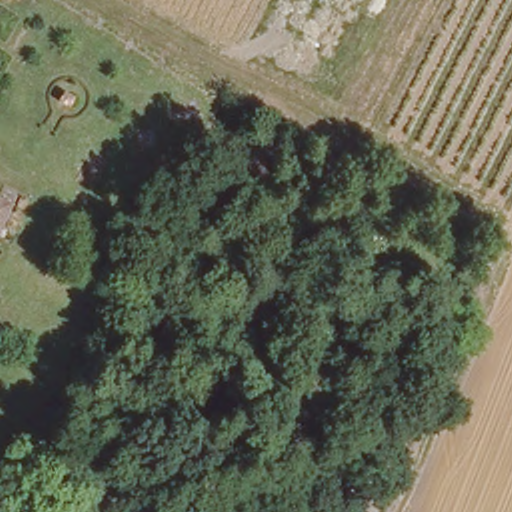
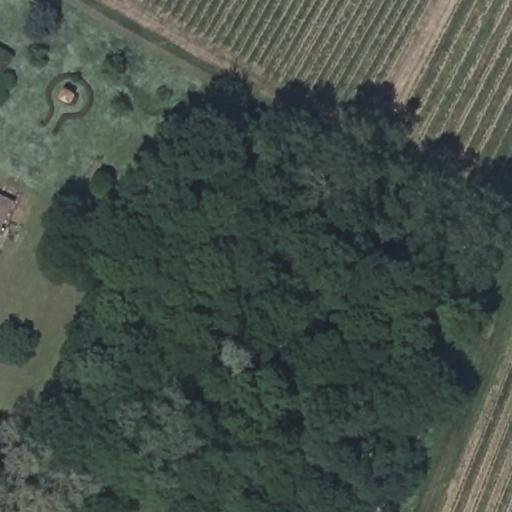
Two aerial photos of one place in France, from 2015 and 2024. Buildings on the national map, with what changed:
unchanged [(78,98),(66,92),(71,83),(83,90),(78,98)]

